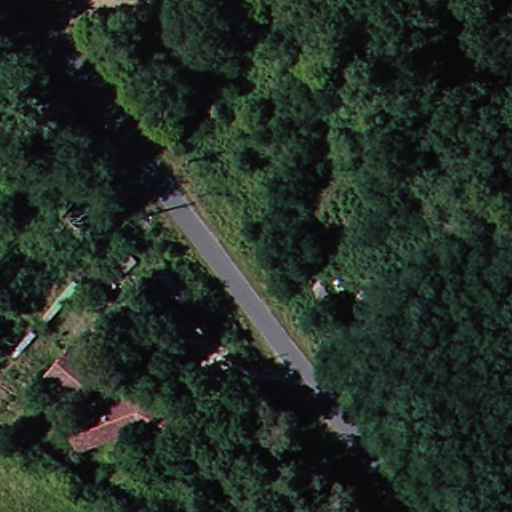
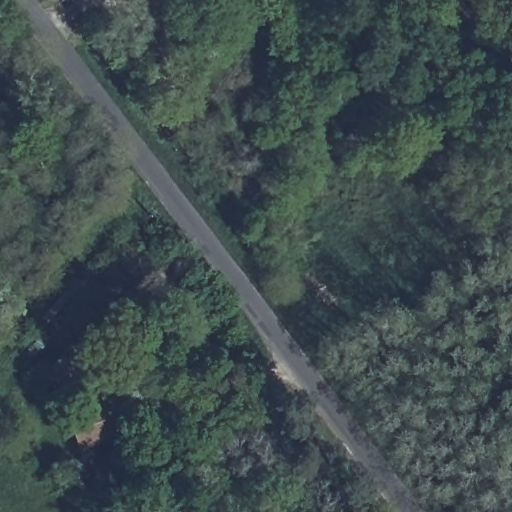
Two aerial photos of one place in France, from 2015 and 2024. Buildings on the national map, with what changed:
unchanged [(66,349),(103,377),(86,400),(47,375),(66,349)]
unchanged [(66,421),(84,412),(120,394),(147,392),(184,403),(173,437),(136,425),(101,444),(82,453),(66,421)]

